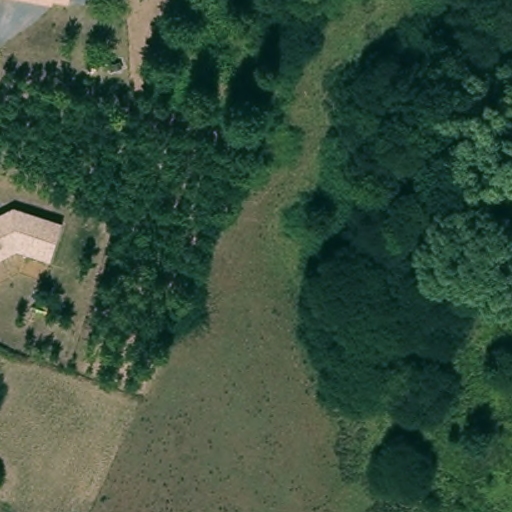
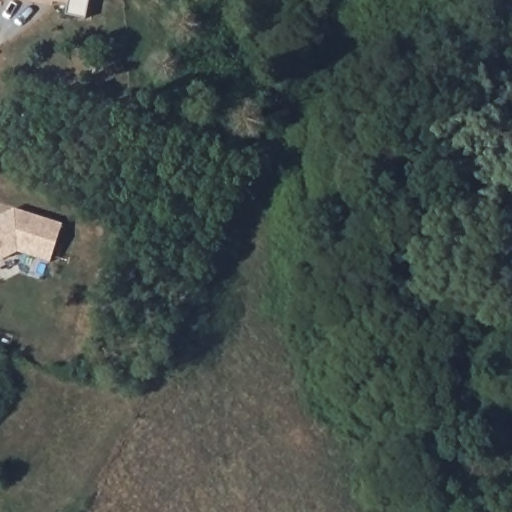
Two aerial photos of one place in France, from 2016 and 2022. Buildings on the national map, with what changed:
unchanged [(52,3),(52,6),(18,0),(70,0),(68,6),(52,3)]
unchanged [(14,209),(63,224),(51,263),(19,252),(0,261),(0,216),(14,209)]

